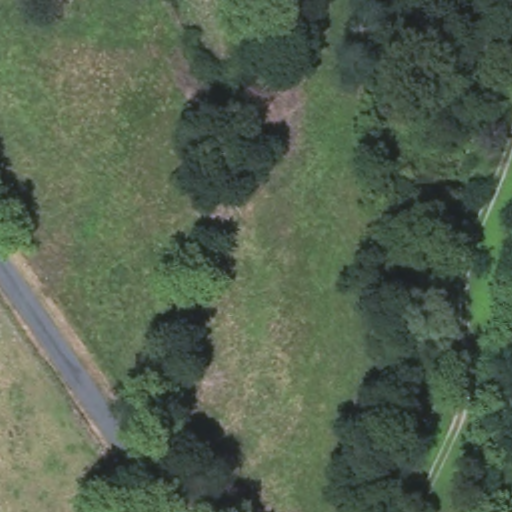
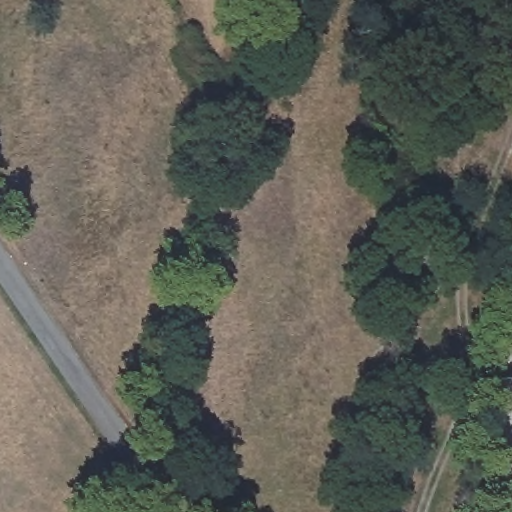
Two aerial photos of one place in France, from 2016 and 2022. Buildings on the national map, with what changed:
unchanged [(438,17),(454,0),(490,0),(457,36),(438,17)]

